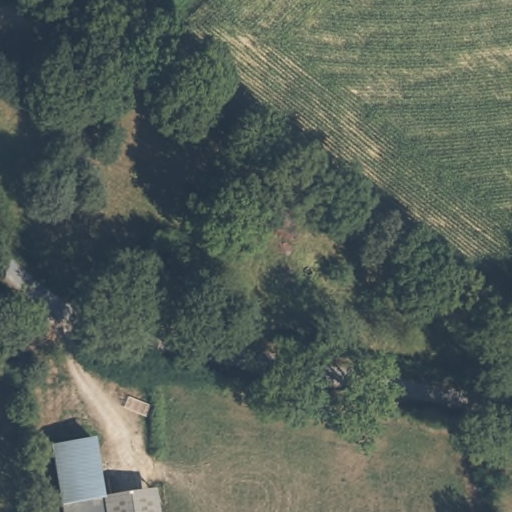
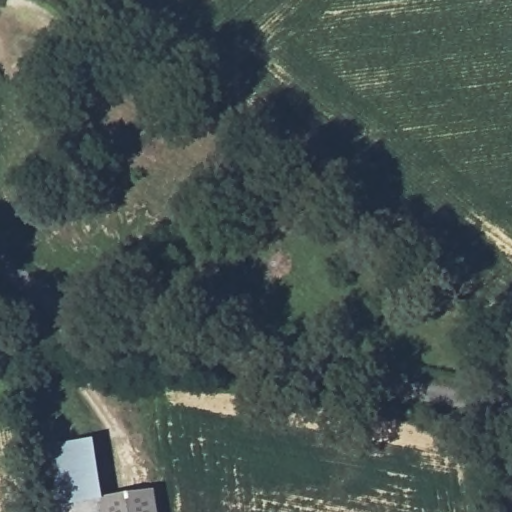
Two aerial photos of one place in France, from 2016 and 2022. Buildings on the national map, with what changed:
unchanged [(49,449),(89,442),(99,499),(59,504),(49,449)]
unchanged [(151,491),(154,512),(60,512),(59,504),(99,499),(151,491)]

